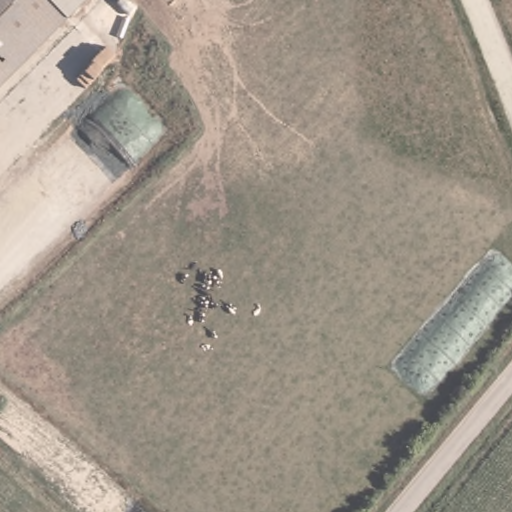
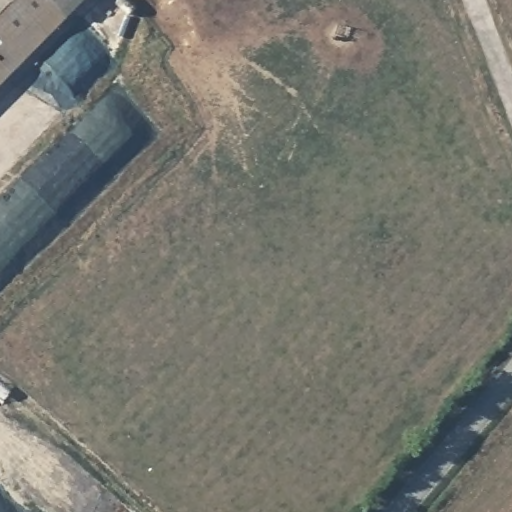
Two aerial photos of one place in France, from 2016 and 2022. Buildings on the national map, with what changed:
unchanged [(0,91),(0,0),(91,0),(0,91)]

